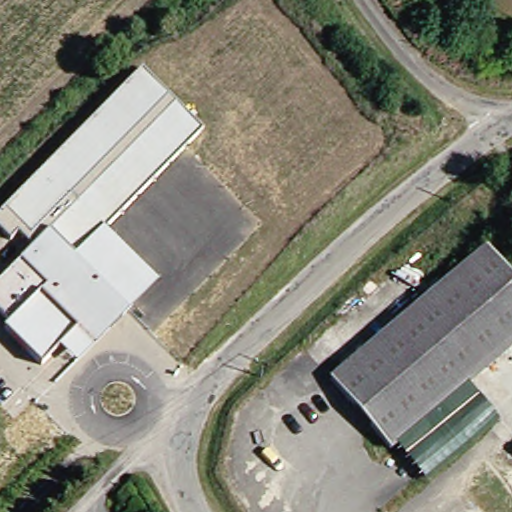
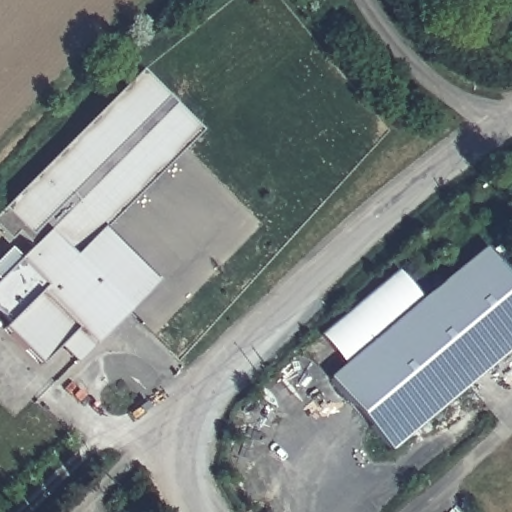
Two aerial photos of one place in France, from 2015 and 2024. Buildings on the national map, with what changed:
unchanged [(200,131),(103,226),(161,281),(76,363),(58,347),(39,364),(3,330),(11,323),(0,311),(0,279),(32,247),(17,232),(9,239),(0,230),(0,211),(142,69),(200,131)]
unchanged [(512,279),(512,349),(390,452),(330,380),(486,249),(512,279)]
new [(423,302),(345,367),(319,335),(396,270),(423,302)]

